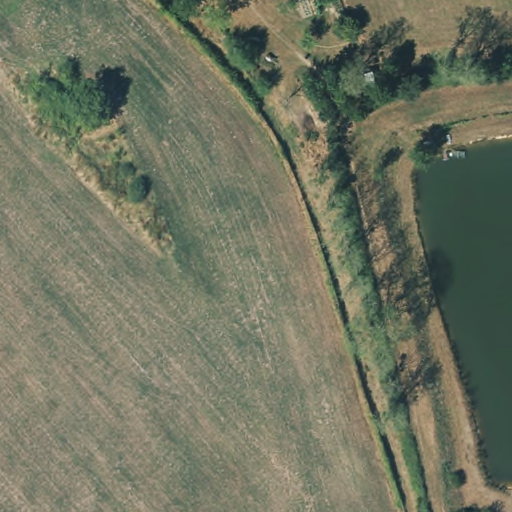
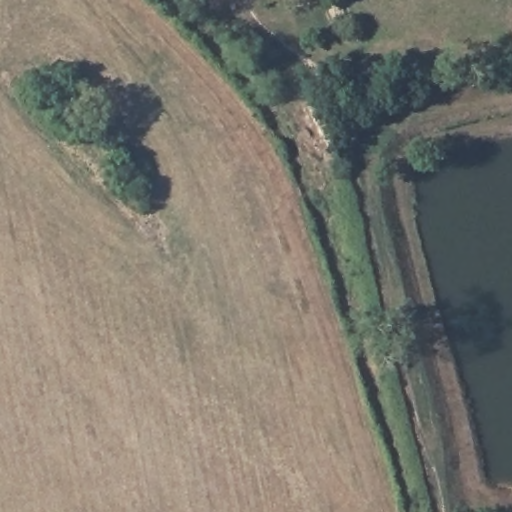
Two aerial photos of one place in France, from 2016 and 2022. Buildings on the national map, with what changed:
[]

